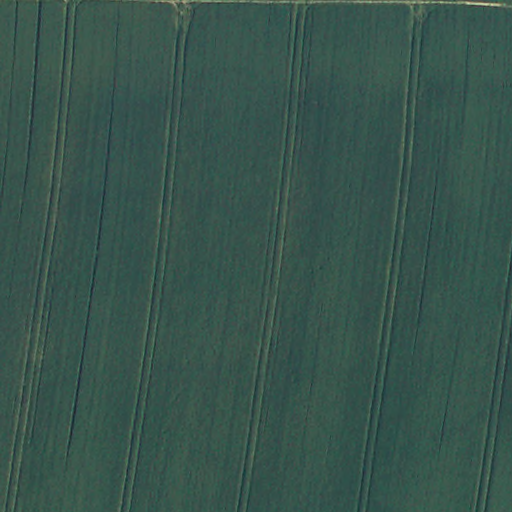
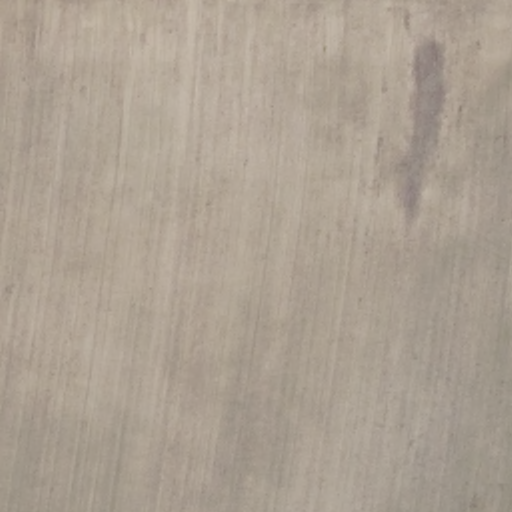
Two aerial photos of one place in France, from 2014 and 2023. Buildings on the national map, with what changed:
[]

